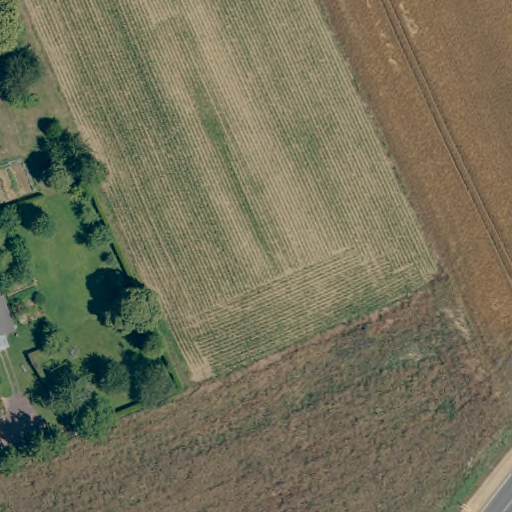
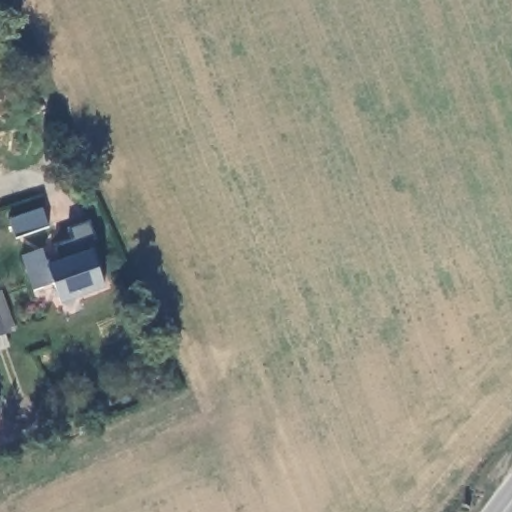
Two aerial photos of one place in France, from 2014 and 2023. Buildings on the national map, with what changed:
new [(9,220),(42,208),(48,228),(15,240),(9,220)]
new [(41,249),(47,266),(60,261),(55,246),(71,239),(69,230),(89,222),(96,239),(87,241),(92,252),(105,288),(61,305),(55,286),(34,290),(22,257),(41,249)]
unchanged [(0,336),(0,293),(14,331),(0,336)]

